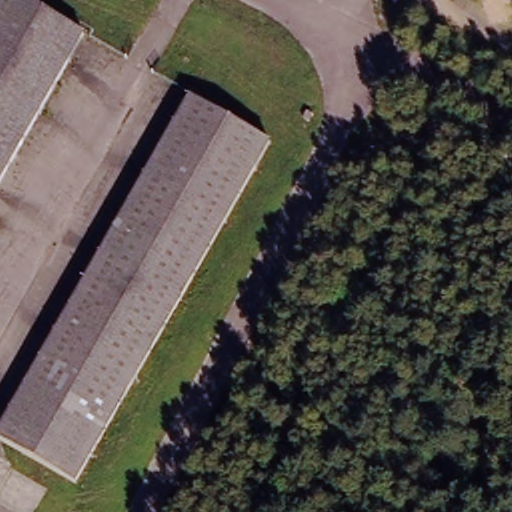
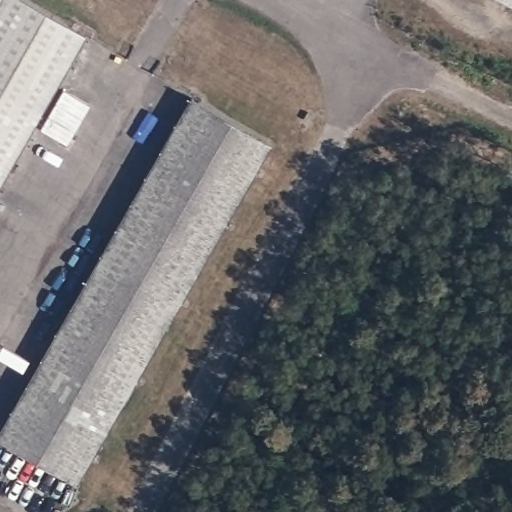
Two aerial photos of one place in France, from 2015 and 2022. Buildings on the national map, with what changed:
unchanged [(76,27),(0,170),(0,0),(26,0),(76,27)]
unchanged [(512,5),(503,0),(512,0),(512,5)]
unchanged [(264,136),(81,483),(9,447),(193,99),(264,136)]

